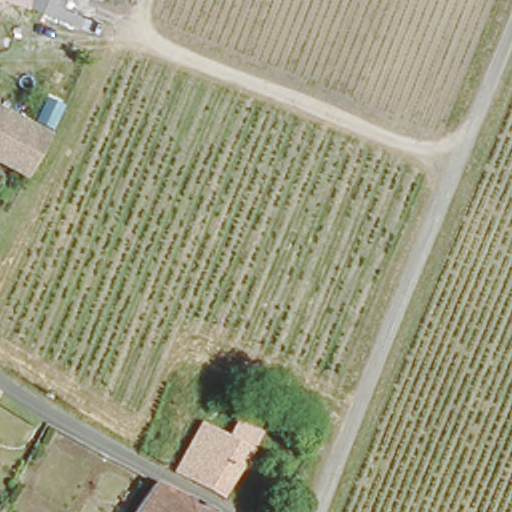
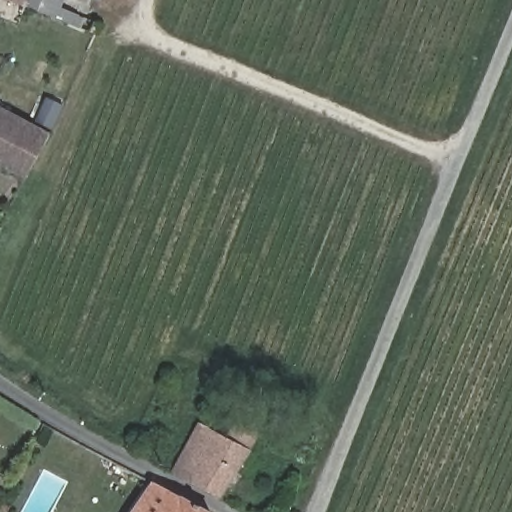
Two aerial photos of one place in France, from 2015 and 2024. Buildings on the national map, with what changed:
unchanged [(58,7),(95,20),(90,32),(0,1),(0,0),(60,0),(58,7)]
unchanged [(0,100),(8,104),(19,110),(26,114),(50,128),(26,174),(0,158),(0,100)]
unchanged [(253,448),(228,493),(176,469),(196,422),(253,448)]
unchanged [(214,511),(213,512),(135,512),(155,481),(211,511),(214,511)]

